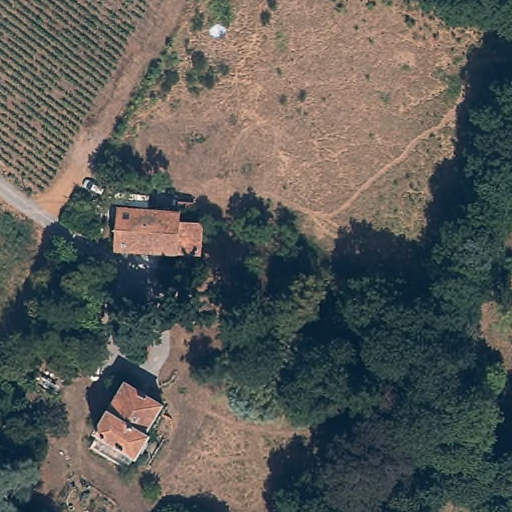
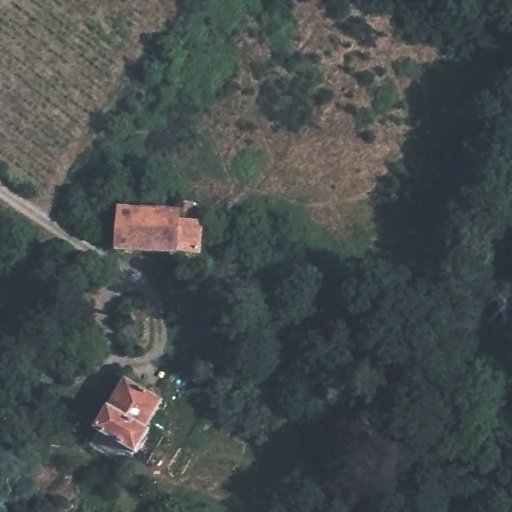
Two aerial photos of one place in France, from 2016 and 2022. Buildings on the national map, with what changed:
unchanged [(185,213),(200,215),(199,225),(208,227),(200,270),(115,253),(122,212),(126,196),(160,202),(157,218),(184,222),(185,213)]
unchanged [(9,415),(0,410),(0,396),(35,344),(50,355),(9,415)]
unchanged [(91,433),(102,421),(140,377),(174,405),(153,429),(158,434),(141,454),(131,467),(91,433)]

